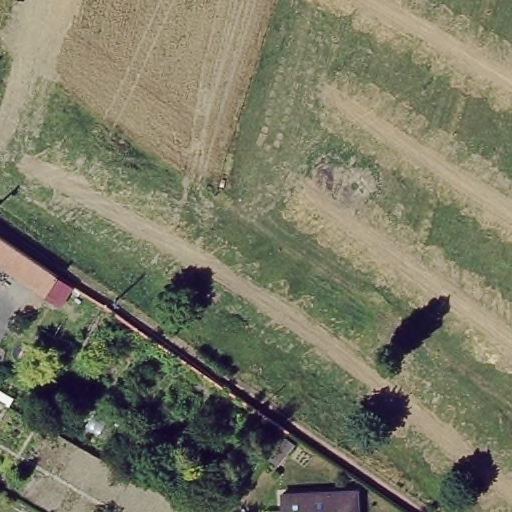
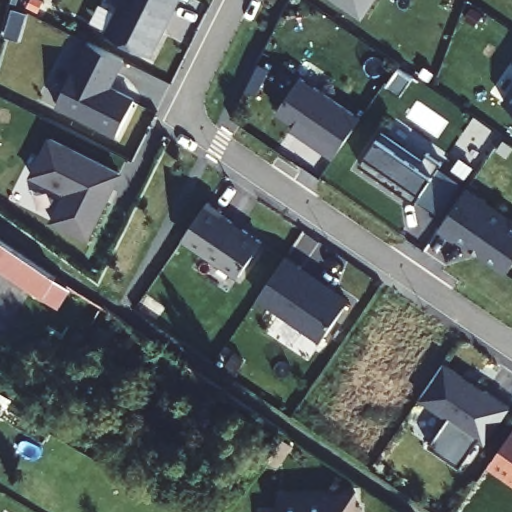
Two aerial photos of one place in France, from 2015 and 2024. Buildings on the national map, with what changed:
new [(178,0),(153,52),(105,30),(120,0),(178,0)]
new [(339,0),(376,0),(365,19),(339,0)]
new [(125,59),(111,86),(134,98),(116,133),(58,105),(90,42),(125,59)]
new [(363,116),(335,159),(291,129),(295,125),(277,114),(303,75),(363,116)]
new [(512,89),(512,109),(503,102),(512,89)]
new [(424,158),(428,152),(444,162),(434,175),(424,191),(417,200),(362,164),(369,151),(379,136),(383,130),(424,158)]
new [(122,169),(89,239),(51,220),(64,190),(29,172),(49,134),(122,169)]
new [(512,268),(508,274),(457,240),(455,242),(439,231),(467,186),(512,217),(512,268)]
new [(226,210),(223,213),(265,240),(238,278),(182,240),(209,200),(226,210)]
unchanged [(58,277),(45,295),(0,264),(0,238),(58,277)]
new [(351,298),(323,342),(258,299),(288,254),(351,298)]
new [(512,407),(486,445),(479,440),(462,466),(429,446),(449,418),(420,400),(446,362),(512,405),(512,407)]
new [(512,475),(512,484),(508,481),(512,475)]
unchanged [(282,511),(280,494),(357,487),(359,512),(272,512),(282,511)]

